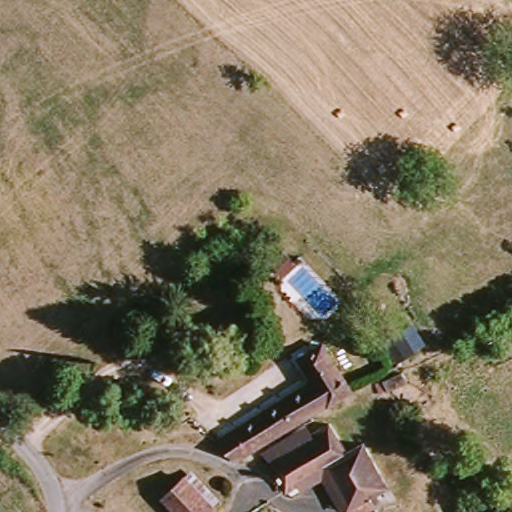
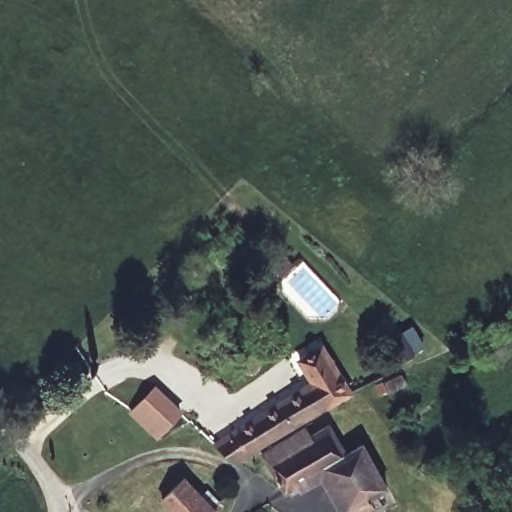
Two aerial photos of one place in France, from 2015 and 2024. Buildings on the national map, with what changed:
unchanged [(268,270),(280,260),(290,271),(278,281),(268,270)]
unchanged [(396,333),(410,354),(392,367),(378,345),(393,335),(396,333)]
unchanged [(346,397),(234,467),(233,468),(228,470),(227,470),(206,452),(215,446),(210,436),(231,421),(240,429),(309,382),(293,363),(318,347),(346,397)]
new [(184,412),(156,440),(128,412),(156,383),(184,412)]
unchanged [(370,512),(341,512),(325,481),(284,499),(265,463),(331,430),(348,462),(366,493),(375,510),(370,512)]
unchanged [(366,493),(348,462),(375,447),(392,480),(366,493)]
unchanged [(184,473),(216,505),(210,512),(175,512),(160,499),(184,473)]

